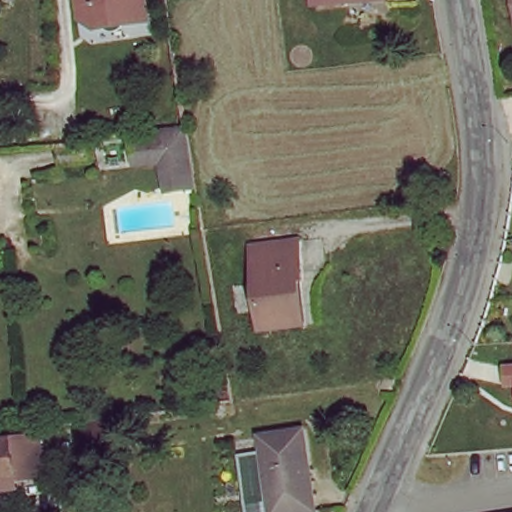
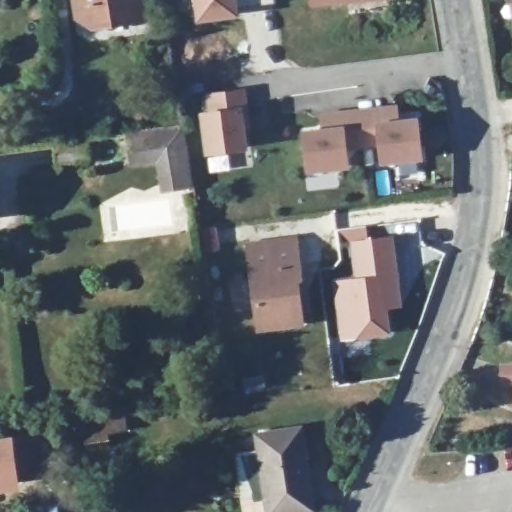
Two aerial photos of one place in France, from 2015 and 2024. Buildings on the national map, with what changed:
unchanged [(90,23),(88,11),(76,13),(75,6),(74,0),(142,0),(142,2),(144,15),(131,17),(90,23)]
new [(238,17),(197,22),(194,0),(274,0),(274,4),(238,8),(238,17)]
unchanged [(315,8),(314,0),(388,0),(389,2),(315,8)]
new [(210,97),(245,93),(248,112),(250,130),(245,131),(248,150),(210,155),(205,116),(213,115),(210,97)]
new [(397,107),(399,122),(418,120),(423,158),(385,162),(382,145),(365,147),(361,112),(397,107)]
new [(325,131),(324,116),(361,112),(365,147),(346,149),(349,167),(311,172),(306,134),(325,131)]
unchanged [(188,182),(156,182),(153,161),(125,162),(122,130),(178,124),(188,182)]
unchanged [(506,145),(512,144),(512,172),(510,172),(506,145)]
new [(351,276),(344,239),(340,240),(338,229),(367,225),(369,237),(394,235),(403,307),(389,310),(393,336),(339,342),(330,278),(351,276)]
unchanged [(292,245),(296,279),(291,280),(296,323),(258,329),(246,251),(292,245)]
unchanged [(501,387),(501,365),(512,364),(512,386),(501,387)]
unchanged [(267,512),(259,446),(257,433),(311,425),(324,512),(267,512)]
unchanged [(45,480),(0,485),(0,446),(40,441),(45,480)]
unchanged [(267,512),(262,512),(239,512),(229,449),(259,446),(267,512)]

